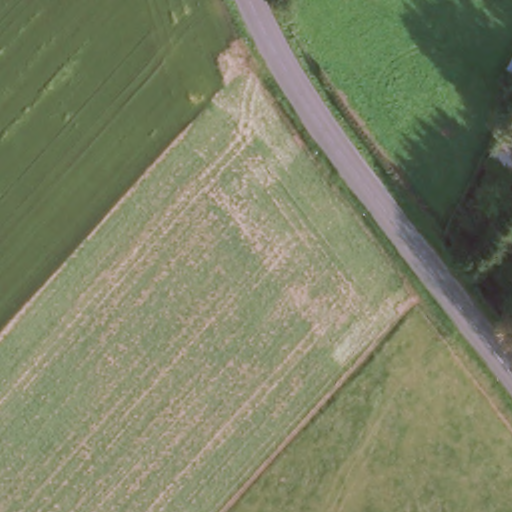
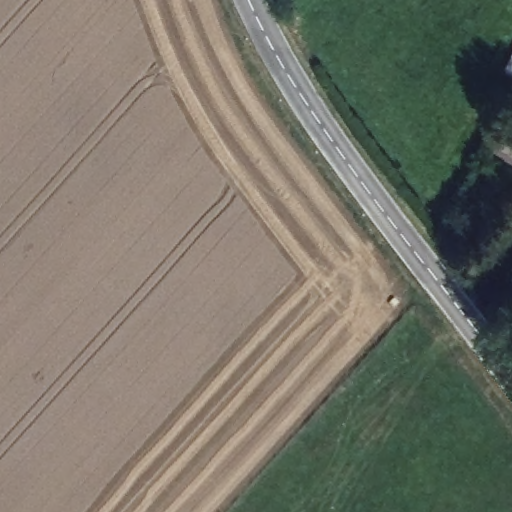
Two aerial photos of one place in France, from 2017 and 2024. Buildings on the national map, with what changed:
unchanged [(502,69),(512,48),(512,73),(502,69)]
unchanged [(482,156),(504,125),(512,130),(512,175),(482,156)]

